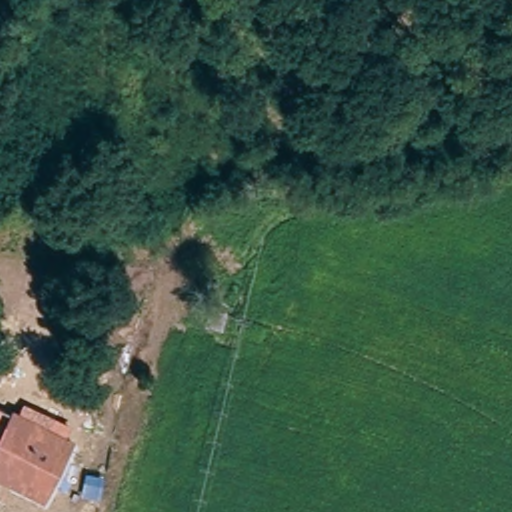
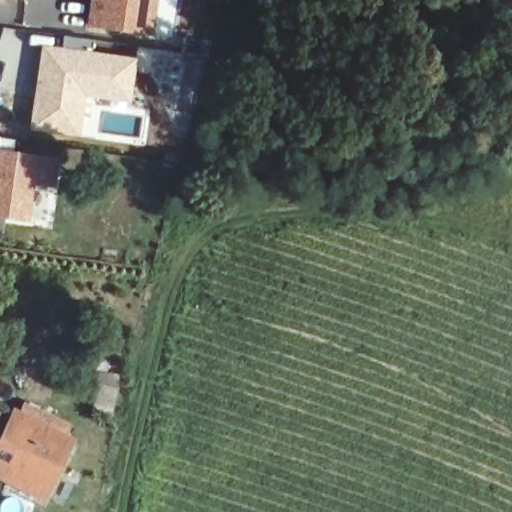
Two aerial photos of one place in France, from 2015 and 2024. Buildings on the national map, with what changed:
new [(152,35),(90,28),(94,0),(157,0),(152,35)]
new [(64,50),(65,37),(92,41),(91,53),(136,60),(131,104),(85,99),(80,137),(30,130),(41,45),(64,50)]
unchanged [(0,478),(0,429),(12,402),(33,412),(5,480),(0,478)]
unchanged [(5,480),(33,412),(78,435),(47,501),(5,480)]

